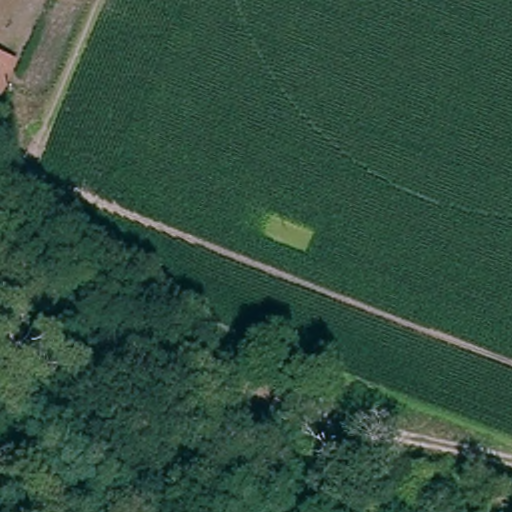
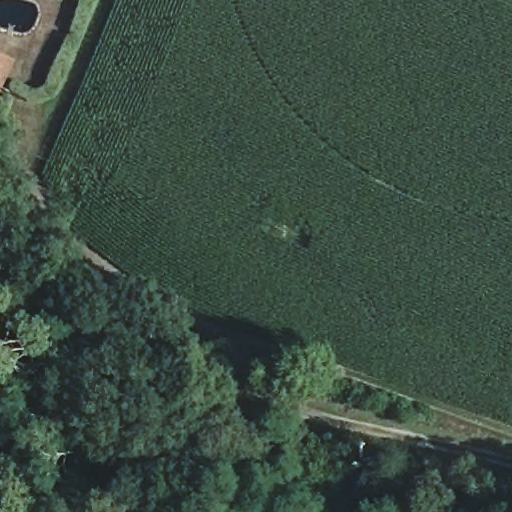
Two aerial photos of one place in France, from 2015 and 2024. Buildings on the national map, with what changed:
unchanged [(64,0),(68,0),(68,1),(64,0)]
unchanged [(7,61),(0,75),(0,58),(7,61)]

